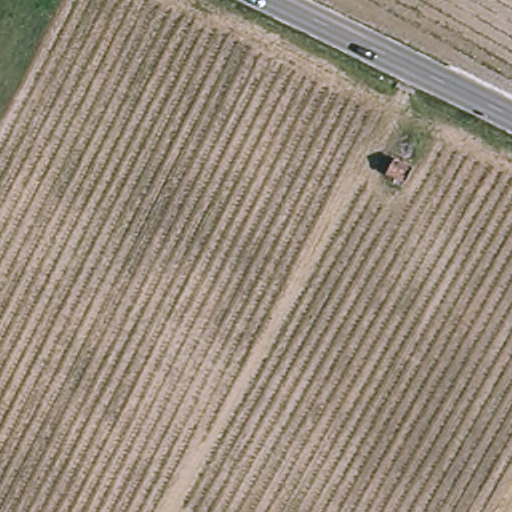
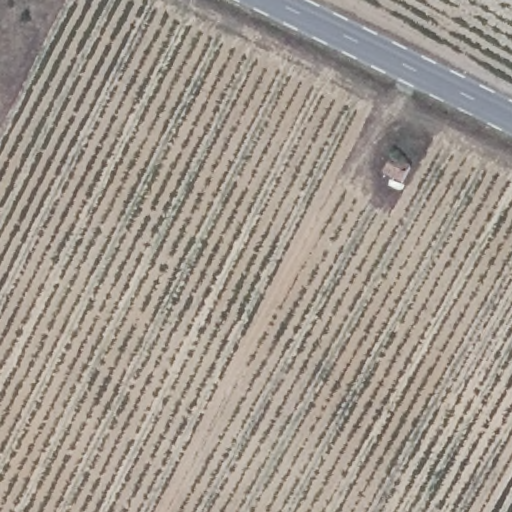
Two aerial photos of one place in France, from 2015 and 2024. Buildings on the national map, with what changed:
unchanged [(408,165),(402,177),(387,169),(392,157),(408,165)]

